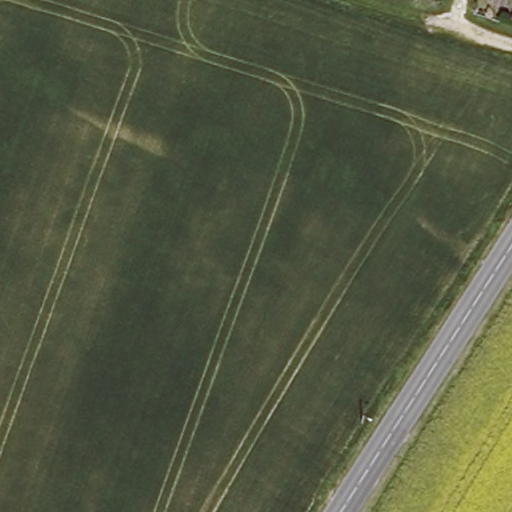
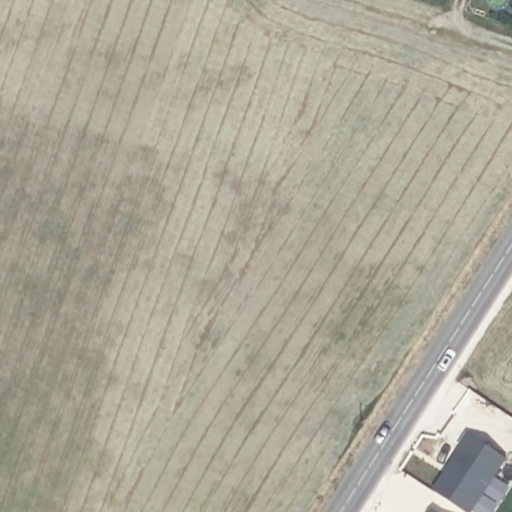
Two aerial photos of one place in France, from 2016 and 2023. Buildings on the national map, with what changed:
new [(460,449),(457,446),(466,432),(506,458),(473,512),(471,512),(435,488),(460,449)]
new [(437,512),(434,512),(435,510),(437,512)]

